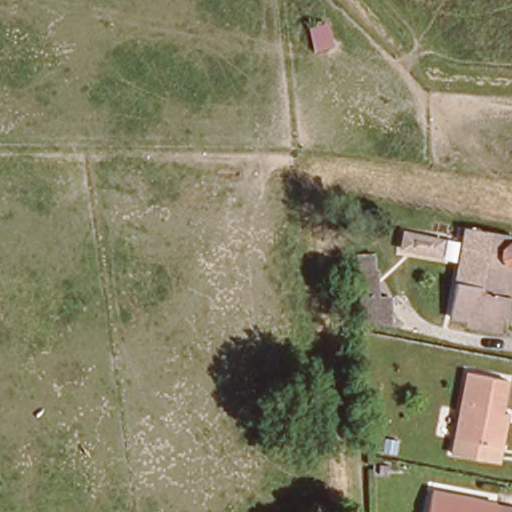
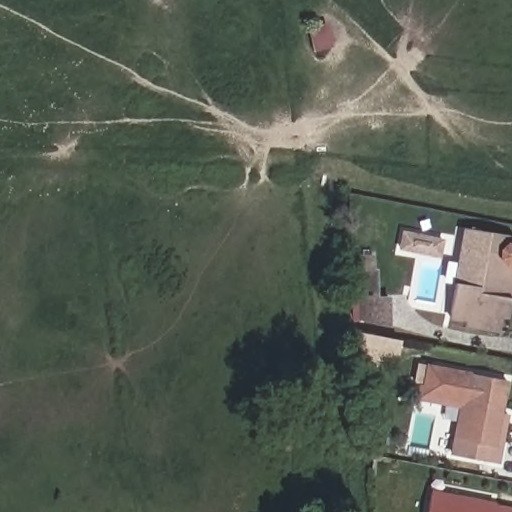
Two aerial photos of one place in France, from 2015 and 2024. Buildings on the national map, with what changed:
unchanged [(508,310),(478,304),(475,315),(453,312),(460,279),(463,262),(470,228),(512,237),(512,286),(511,292),(508,310)]
unchanged [(396,252),(401,230),(448,238),(444,262),(396,252)]
unchanged [(346,262),(369,258),(375,303),(386,301),(389,320),(355,324),(346,262)]
new [(419,382),(423,383),(426,363),(466,370),(464,375),(458,406),(416,399),(419,382)]
unchanged [(499,447),(496,463),(448,453),(451,439),(458,406),(464,375),(502,382),(495,415),(505,417),(499,447)]
unchanged [(490,503),(489,512),(422,512),(425,492),(490,503)]
new [(512,508),(512,512),(489,512),(490,504),(512,508)]

